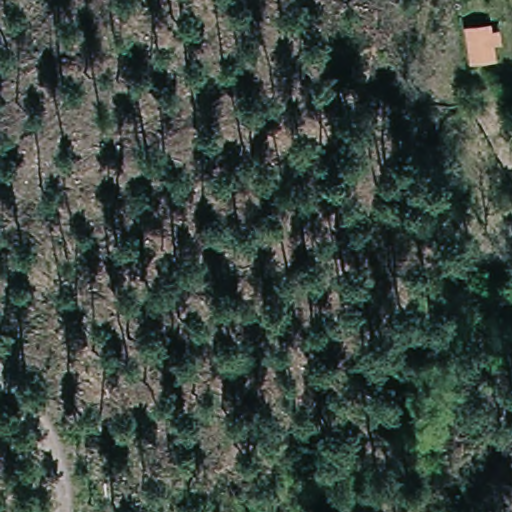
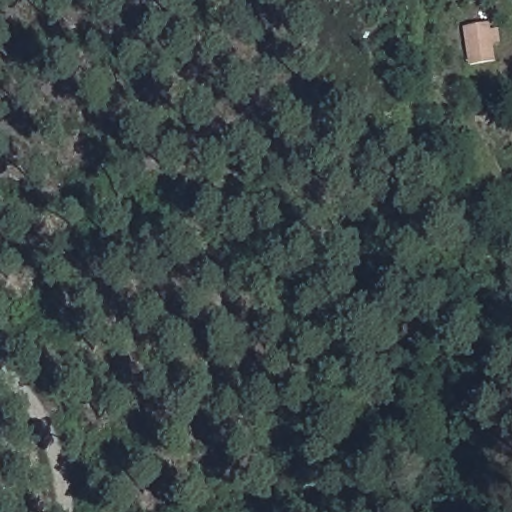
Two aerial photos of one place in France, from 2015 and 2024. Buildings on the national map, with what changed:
unchanged [(465,27),(495,23),(500,64),(470,70),(465,27)]

